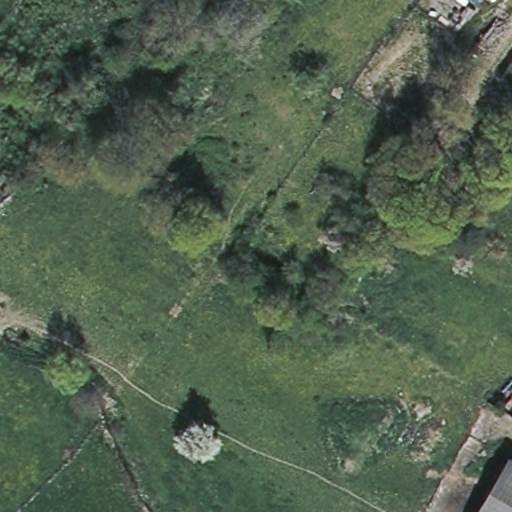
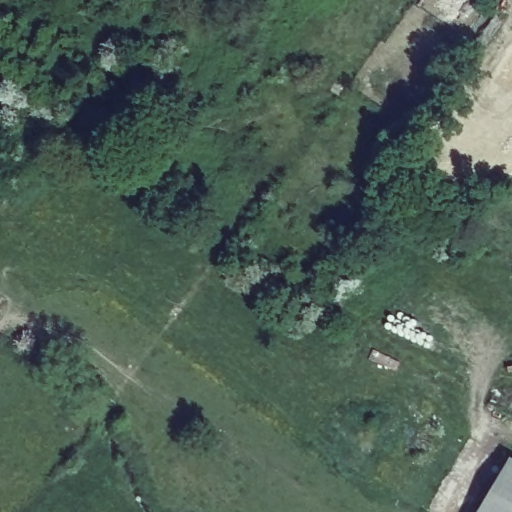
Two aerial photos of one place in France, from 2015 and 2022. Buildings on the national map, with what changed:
unchanged [(509,473),(512,469),(512,476),(509,473)]
unchanged [(512,476),(512,512),(486,512),(509,473),(512,476)]

